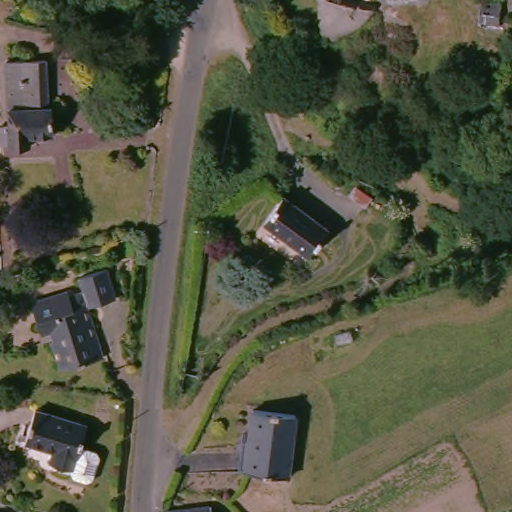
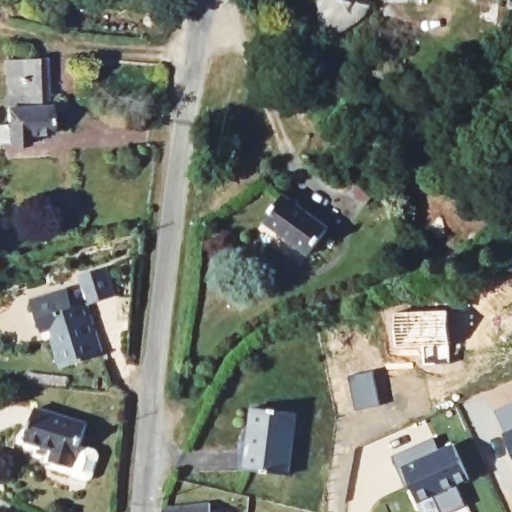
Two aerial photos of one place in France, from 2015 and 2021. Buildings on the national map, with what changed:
unchanged [(49,111),(53,111),(56,140),(39,139),(39,147),(18,148),(10,65),(44,64),(49,111)]
unchanged [(313,259),(264,226),(286,194),(334,227),(313,259)]
unchanged [(111,302),(89,309),(104,358),(71,366),(59,325),(51,326),(44,301),(83,288),(81,278),(104,274),(111,302)]
new [(446,310),(449,364),(423,365),(422,346),(395,348),(394,312),(446,310)]
new [(373,371),(380,405),(355,411),(348,376),(373,371)]
unchanged [(81,453),(96,460),(99,466),(94,488),(90,491),(76,483),(77,475),(58,465),(61,455),(21,440),(41,390),(88,420),(81,453)]
new [(512,402),(512,457),(502,435),(504,434),(494,410),(512,402)]
unchanged [(299,471),(254,472),(253,416),(293,414),(299,471)]
new [(469,480),(456,486),(466,507),(453,512),(440,512),(433,496),(418,503),(410,485),(405,487),(391,456),(433,438),(439,451),(454,445),(469,480)]
unchanged [(213,506),(214,512),(166,512),(166,510),(213,506)]

